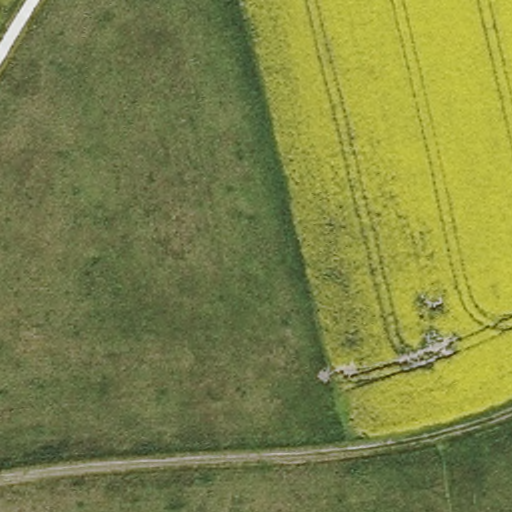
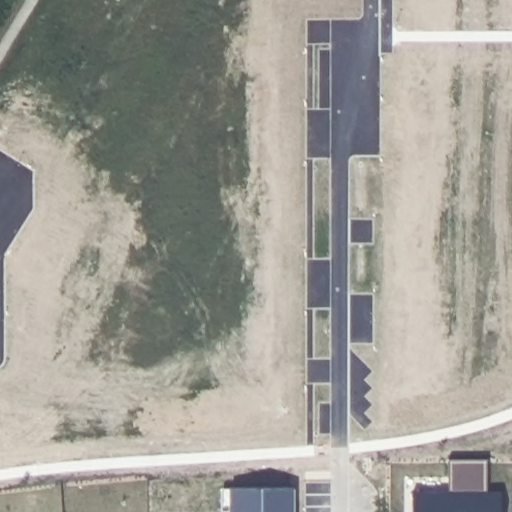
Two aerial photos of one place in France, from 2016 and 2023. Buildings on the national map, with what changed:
new [(412,492),(449,492),(449,458),(487,458),(487,492),(501,492),(501,512),(412,512),(412,492)]
new [(221,512),(229,512),(229,501),(221,501),(221,488),(229,488),(294,488),(294,512),(221,512)]

